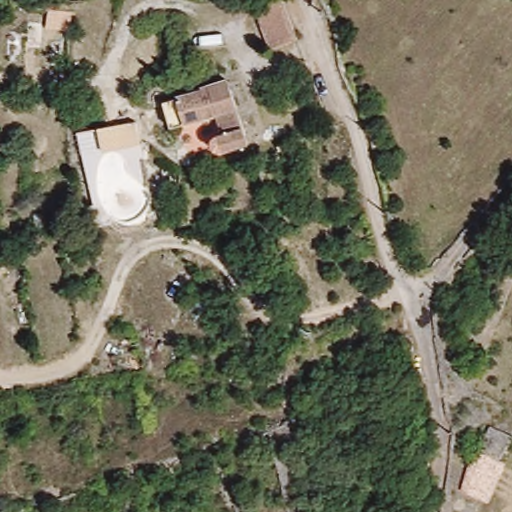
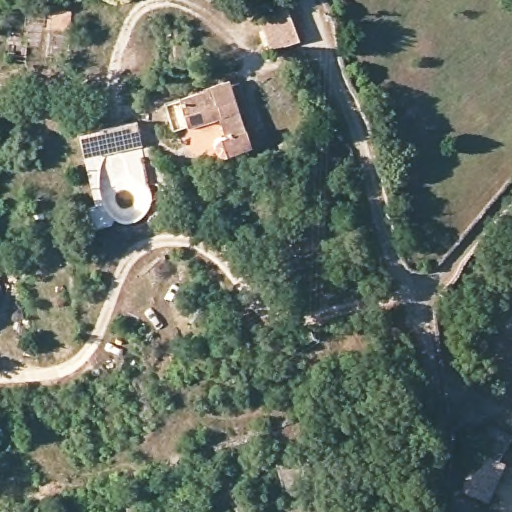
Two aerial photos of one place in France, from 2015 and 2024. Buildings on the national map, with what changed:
unchanged [(274,0),(284,0),(302,43),(277,55),(255,8),(274,0)]
unchanged [(235,80),(254,147),(250,148),(227,155),(220,153),(220,147),(229,137),(224,121),(177,131),(173,97),(235,80)]
unchanged [(142,143),(102,152),(97,129),(140,125),(142,143)]
unchanged [(512,435),(493,476),(472,463),(487,422),(512,435)]

